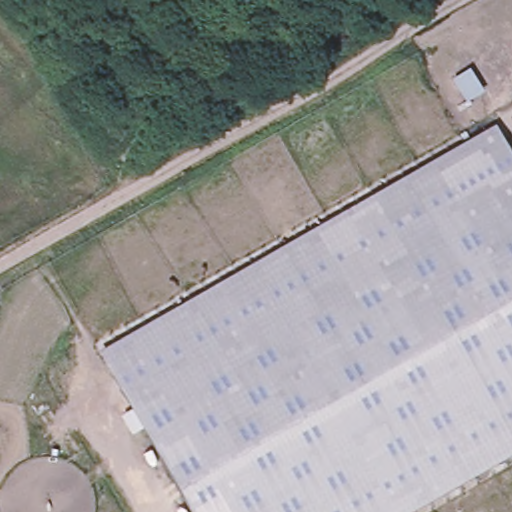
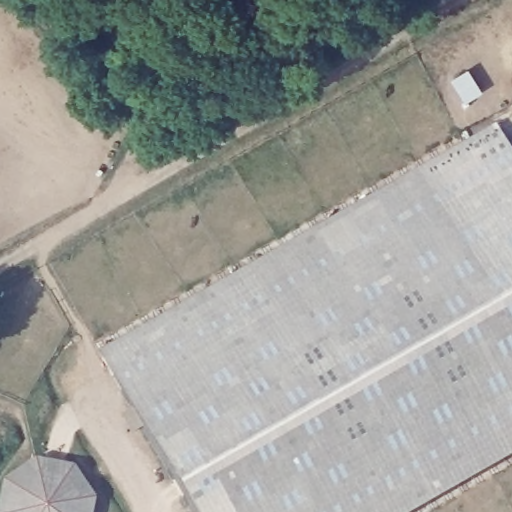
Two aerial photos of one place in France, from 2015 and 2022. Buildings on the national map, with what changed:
unchanged [(512,159),(512,454),(411,512),(189,512),(97,352),(494,128),(512,159)]
new [(2,479),(35,458),(73,466),(95,497),(92,512),(0,512),(0,490),(2,479)]

